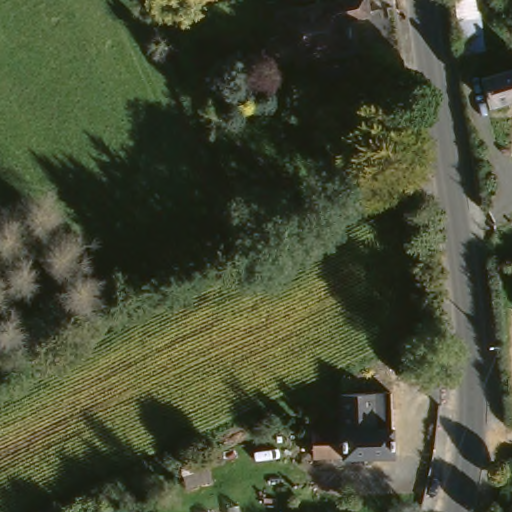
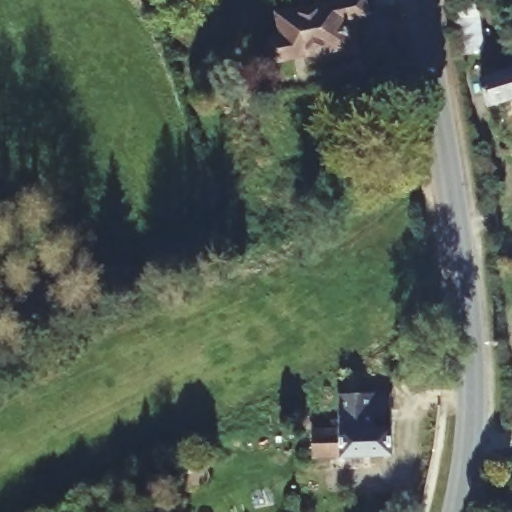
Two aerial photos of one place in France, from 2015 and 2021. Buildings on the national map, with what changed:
unchanged [(269,56),(268,53),(267,47),(269,43),(274,40),(281,38),(276,14),(348,0),(361,0),(364,16),(347,19),(351,46),(279,61),(273,59),(269,56)]
unchanged [(456,33),(446,34),(446,30),(442,0),(452,0),(456,33)]
unchanged [(512,68),(512,101),(492,107),(483,77),(512,68)]
unchanged [(340,427),(339,395),(341,395),(387,393),(389,427),(394,427),(395,453),(342,456),(316,457),(314,429),(340,427)]

